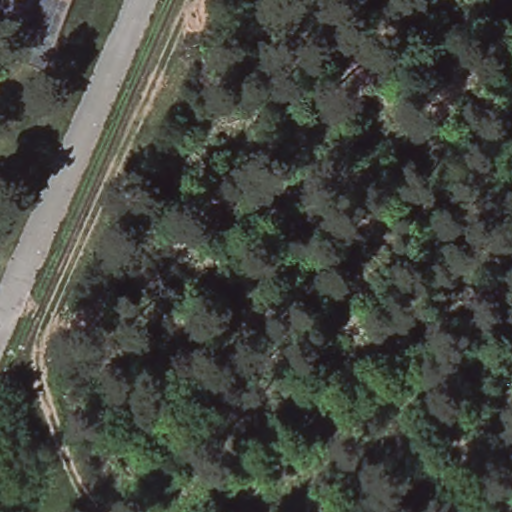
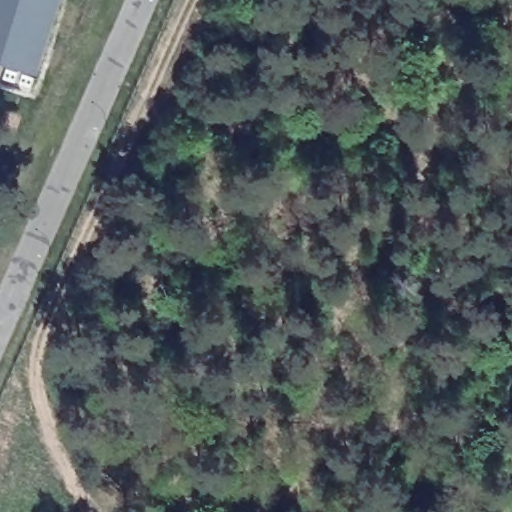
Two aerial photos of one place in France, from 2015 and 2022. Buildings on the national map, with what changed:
new [(60,0),(39,69),(0,59),(0,0),(60,0)]

